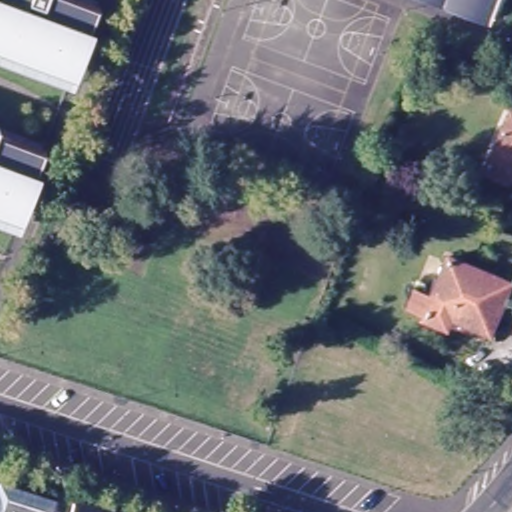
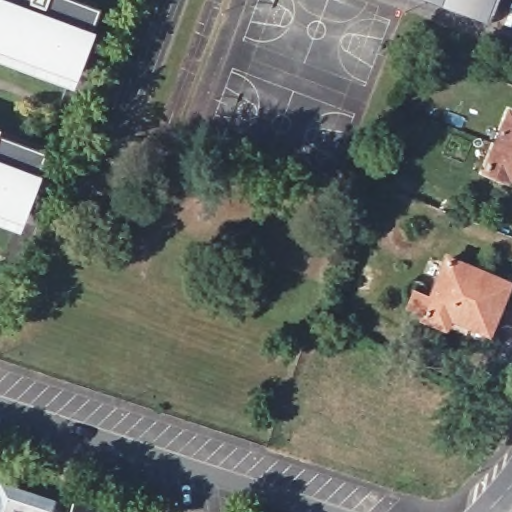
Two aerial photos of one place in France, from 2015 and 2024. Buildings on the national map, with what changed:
unchanged [(74,78),(0,50),(0,0),(74,0),(100,10),(74,78)]
unchanged [(512,0),(503,24),(438,0),(512,0)]
unchanged [(506,179),(485,170),(509,111),(512,113),(512,180),(507,178),(506,179)]
unchanged [(45,153),(20,221),(0,213),(0,136),(45,153)]
unchanged [(428,317),(430,312),(412,304),(419,289),(437,297),(453,259),(512,284),(512,289),(494,332),(490,343),(451,327),(428,317)]
unchanged [(52,504),(50,511),(55,512),(0,512),(0,485),(52,504)]
unchanged [(68,499),(93,507),(101,509),(101,512),(63,512),(68,499)]

